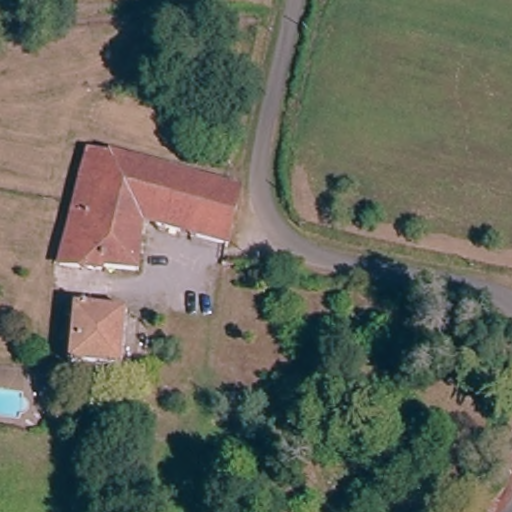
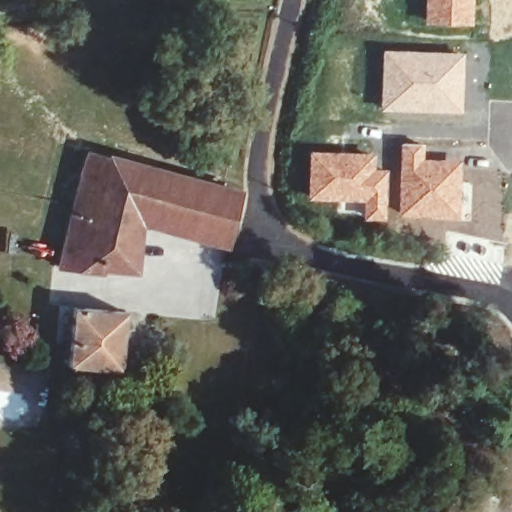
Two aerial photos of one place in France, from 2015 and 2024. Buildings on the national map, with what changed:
new [(475,25),(424,24),(424,0),(475,0),(475,25)]
new [(382,48),(466,51),(462,113),(379,109),(382,48)]
new [(399,141),(425,143),(424,157),(462,158),(461,219),(398,215),(399,141)]
new [(309,149),(377,151),(377,166),(388,167),(384,220),(361,220),(362,203),(307,200),(309,149)]
unchanged [(245,192),(229,246),(148,227),(134,274),(64,257),(91,152),(229,189),(245,192)]
unchanged [(130,322),(116,379),(63,365),(78,310),(130,322)]

